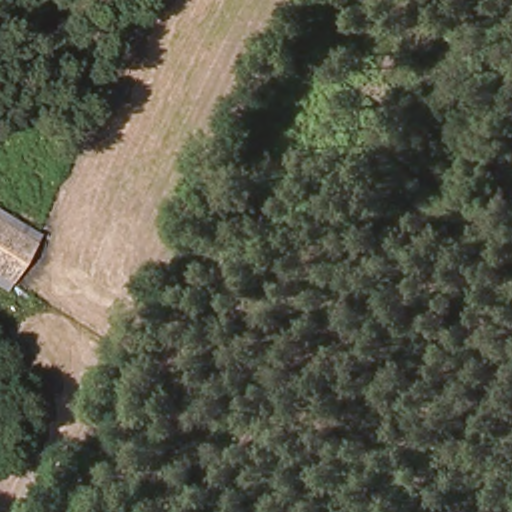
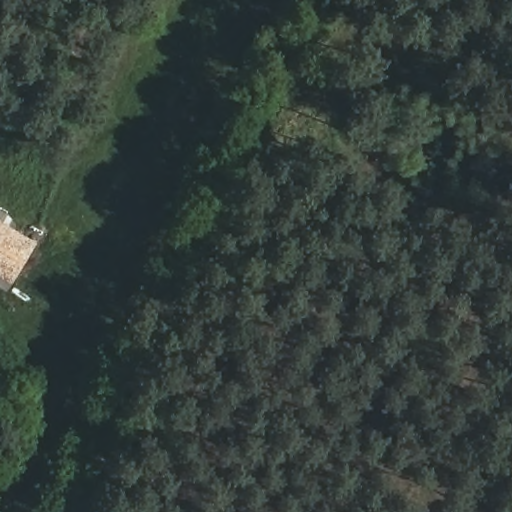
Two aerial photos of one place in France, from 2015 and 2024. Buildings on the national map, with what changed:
unchanged [(8,292),(0,288),(0,211),(41,238),(8,292)]

